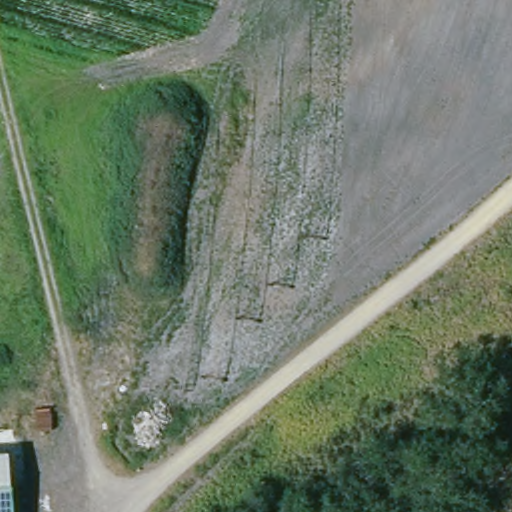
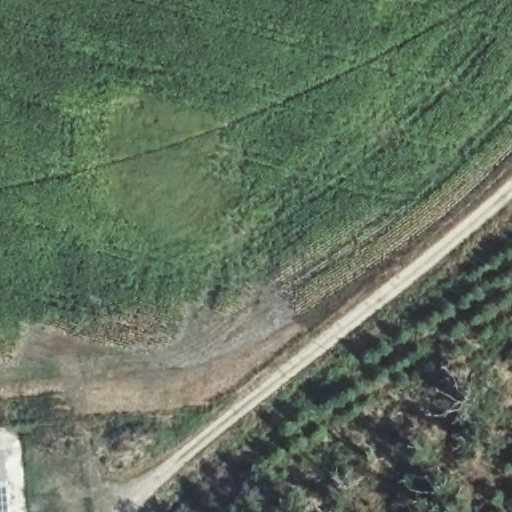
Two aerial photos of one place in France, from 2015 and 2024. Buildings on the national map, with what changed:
unchanged [(9,512),(0,512),(0,453),(5,453),(9,512)]

